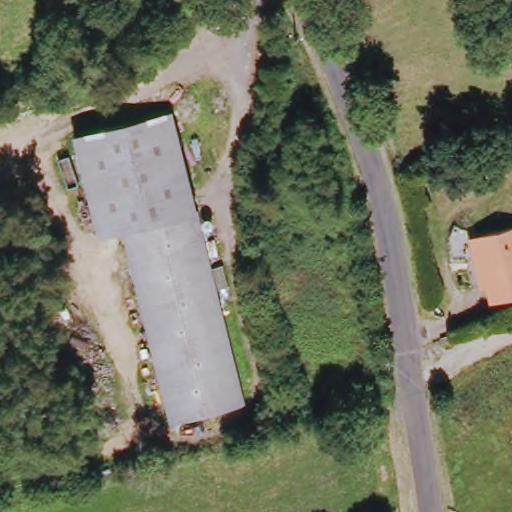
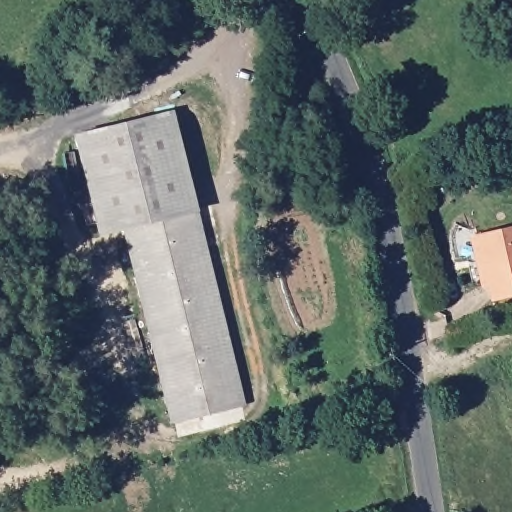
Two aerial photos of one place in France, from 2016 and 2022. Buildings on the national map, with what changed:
unchanged [(172,110),(249,400),(175,418),(121,228),(97,234),(82,174),(72,135),(77,134),(172,110)]
unchanged [(500,301),(497,289),(487,292),(477,240),(485,236),(512,230),(512,298),(500,301)]

